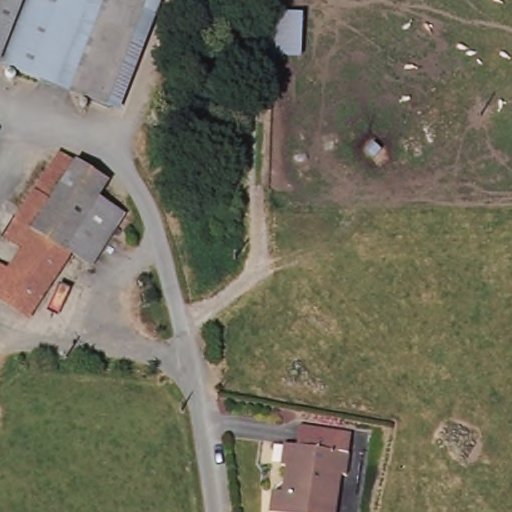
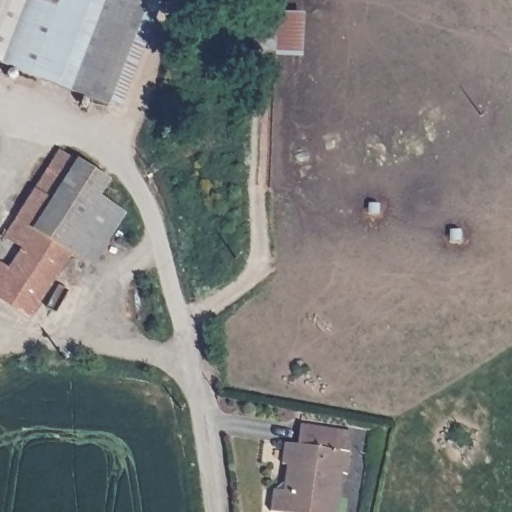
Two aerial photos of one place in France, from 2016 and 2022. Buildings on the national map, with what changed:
unchanged [(119,107),(94,99),(89,107),(80,105),(83,94),(20,71),(17,80),(8,77),(10,67),(2,62),(0,62),(0,0),(162,0),(119,107)]
unchanged [(301,12),(300,54),(277,53),(276,65),(249,65),(250,53),(233,52),(239,9),(301,12)]
unchanged [(98,193),(120,205),(127,209),(124,213),(96,261),(76,249),(34,312),(0,293),(0,257),(11,263),(21,242),(7,233),(58,146),(106,177),(98,193)]
unchanged [(266,505),(271,482),(281,486),(284,460),(280,458),(285,436),(300,438),(304,420),(336,424),(334,446),(346,447),(344,469),(338,469),(331,512),(286,512),(286,509),(266,505)]

